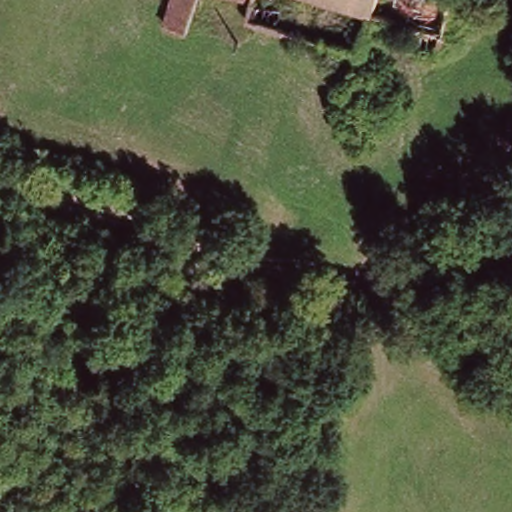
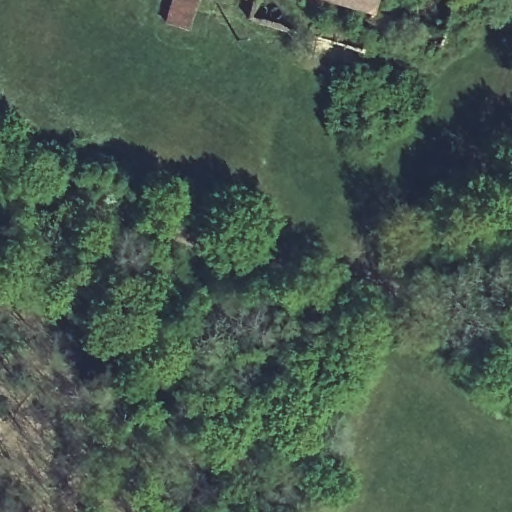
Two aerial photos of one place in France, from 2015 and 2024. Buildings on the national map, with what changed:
unchanged [(170,16),(175,0),(197,0),(190,22),(170,16)]
unchanged [(366,22),(359,41),(248,4),(250,0),(448,0),(432,45),(366,22)]

